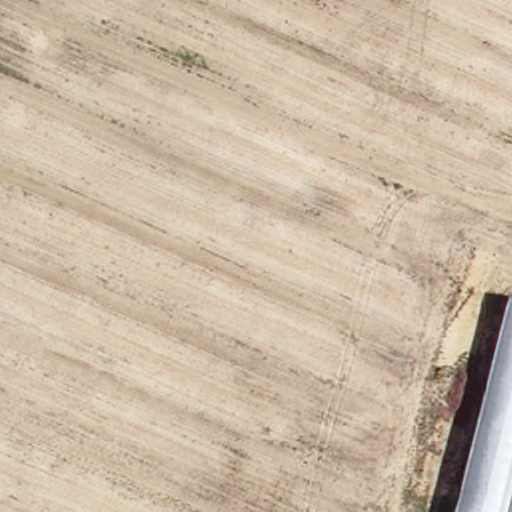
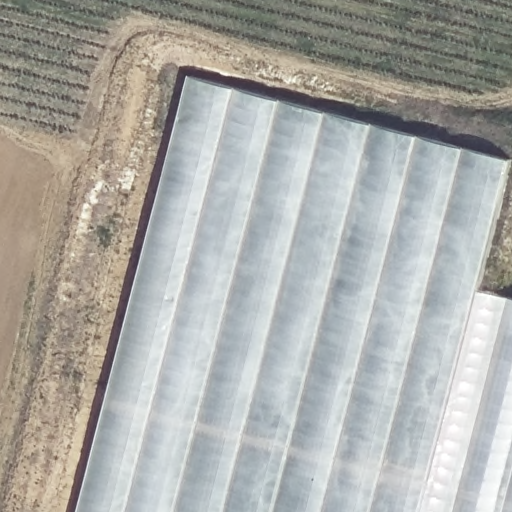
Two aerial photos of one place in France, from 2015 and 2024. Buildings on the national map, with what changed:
new [(483,287),(509,294),(454,512),(75,512),(186,74),(512,157),(512,184),(483,287)]
new [(512,295),(512,512),(454,512),(509,294),(512,295)]

